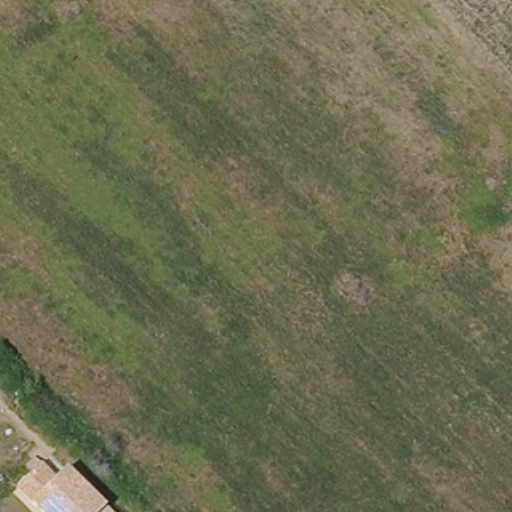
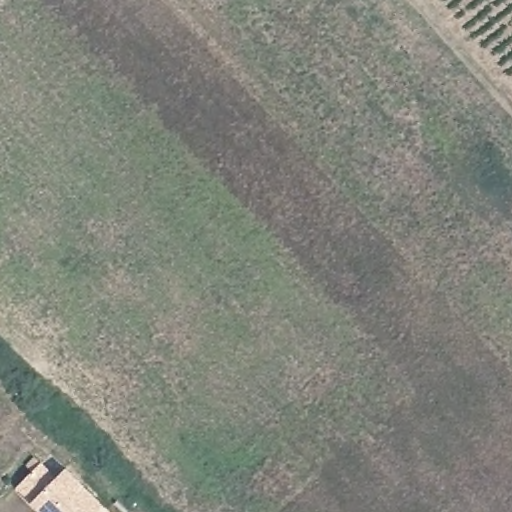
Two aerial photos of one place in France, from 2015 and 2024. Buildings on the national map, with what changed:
unchanged [(56,478),(67,467),(111,512),(36,512),(17,493),(41,465),(56,478)]

